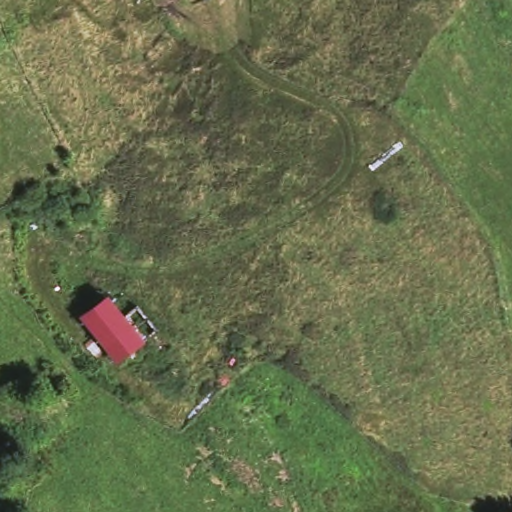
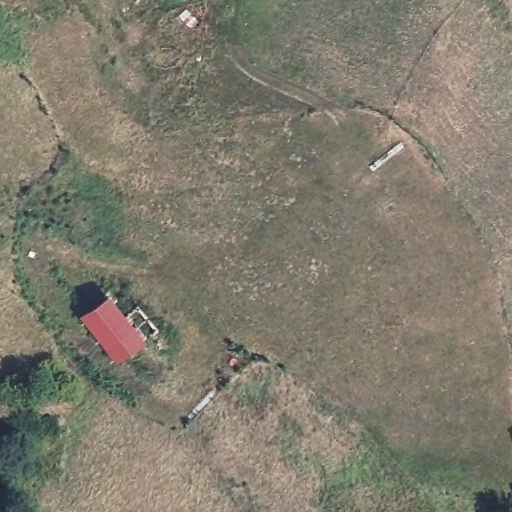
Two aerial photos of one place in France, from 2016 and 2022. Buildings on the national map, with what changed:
unchanged [(148,310),(160,325),(119,358),(84,314),(108,294),(121,312),(138,299),(148,310)]

